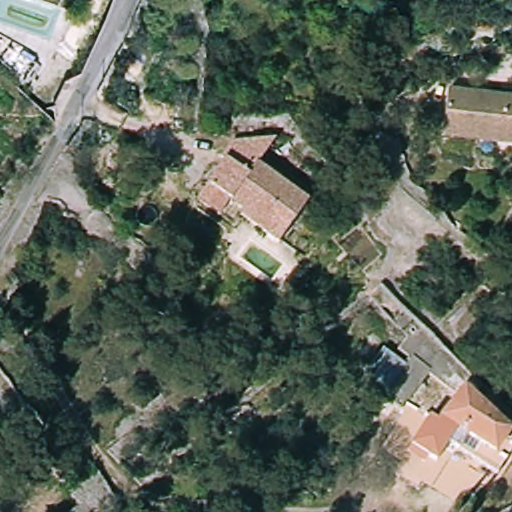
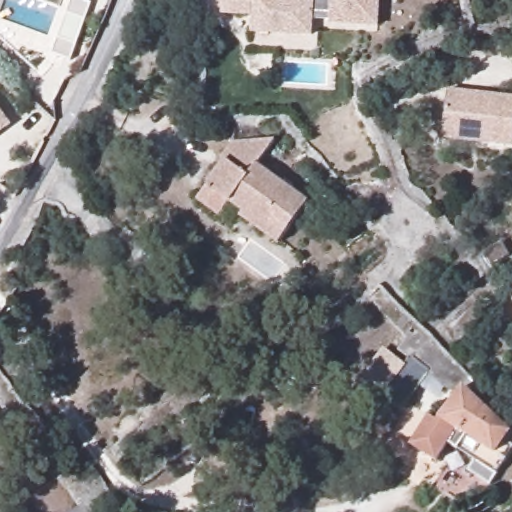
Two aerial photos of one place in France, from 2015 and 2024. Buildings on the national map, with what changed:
new [(329,25),(329,19),(314,19),(312,37),(251,34),(251,15),(221,15),(221,0),(381,0),(380,29),(329,25)]
new [(13,91),(0,80),(0,41),(35,61),(13,91)]
unchanged [(511,148),(441,140),(445,90),(512,97),(512,139),(511,148)]
new [(0,133),(0,111),(11,125),(0,133)]
unchanged [(272,140),(257,164),(310,199),(280,244),(227,209),(222,218),(193,199),(234,138),(272,140)]
unchanged [(382,346),(403,362),(407,358),(396,349),(418,324),(428,334),(435,341),(469,376),(463,384),(510,432),(495,454),(456,429),(449,441),(433,431),(438,418),(455,394),(428,374),(400,411),(375,393),(379,387),(361,374),(382,346)]
unchanged [(79,506),(70,487),(96,471),(114,512),(68,512),(79,506)]

